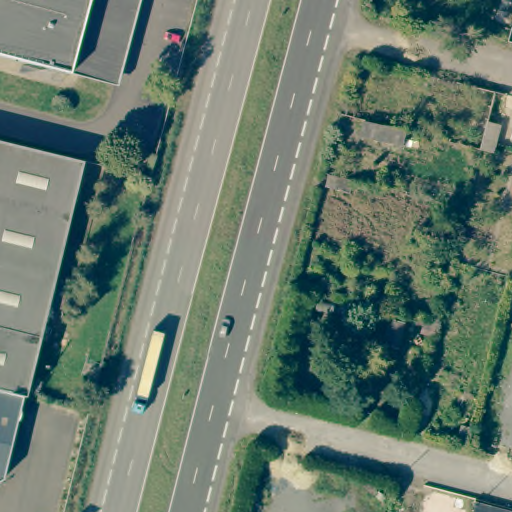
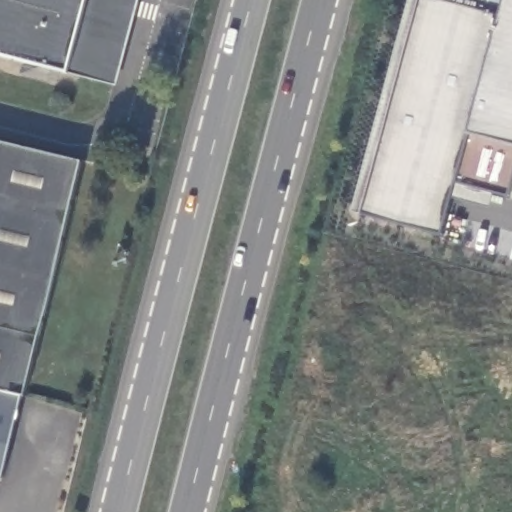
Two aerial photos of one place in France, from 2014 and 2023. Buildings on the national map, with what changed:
unchanged [(0,0),(89,0),(80,35),(69,75),(0,57),(0,0)]
unchanged [(69,75),(80,35),(89,0),(135,0),(112,86),(69,76),(69,75)]
new [(508,197),(494,194),(490,207),(454,199),(443,238),(363,216),(354,213),(411,0),(512,0),(512,185),(508,197)]
demolished [(509,22),(504,38),(482,32),(490,0),(512,0),(512,23),(509,22)]
demolished [(510,38),(512,30),(512,39),(510,38)]
demolished [(493,122),(486,149),(485,151),(462,145),(470,115),(476,117),(479,107),(472,105),(473,100),(457,96),(460,83),(501,94),(493,122)]
demolished [(339,121),(343,107),(369,114),(366,129),(384,134),(380,148),(355,141),(358,127),(339,121)]
demolished [(504,139),(508,124),(512,107),(512,141),(504,139)]
unchanged [(83,169),(26,402),(22,401),(0,396),(0,148),(83,167),(83,169)]
unchanged [(0,485),(0,396),(22,401),(2,484),(0,485)]
demolished [(464,509),(463,512),(413,512),(418,496),(464,509)]
demolished [(475,512),(467,512),(468,510),(475,512)]

